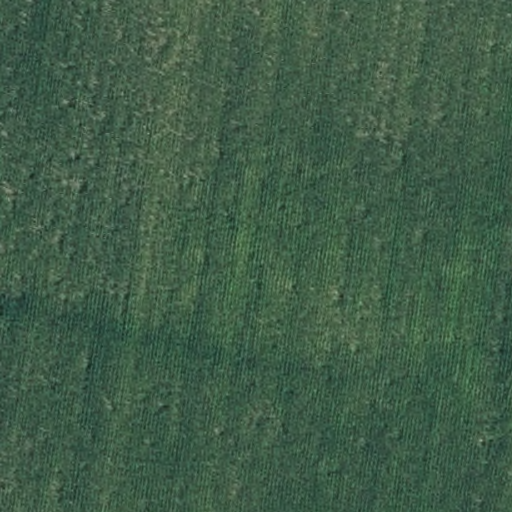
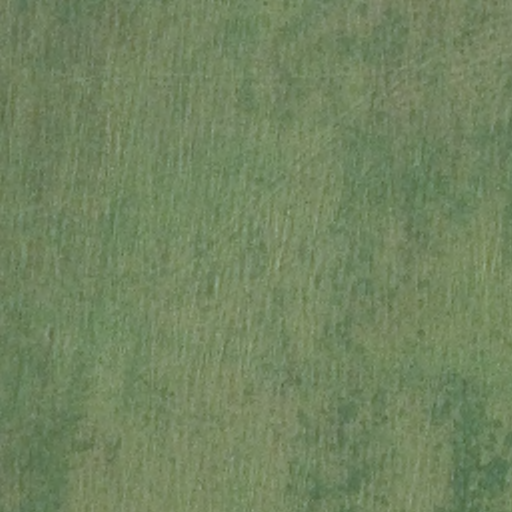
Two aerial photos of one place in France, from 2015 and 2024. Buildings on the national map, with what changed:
[]

